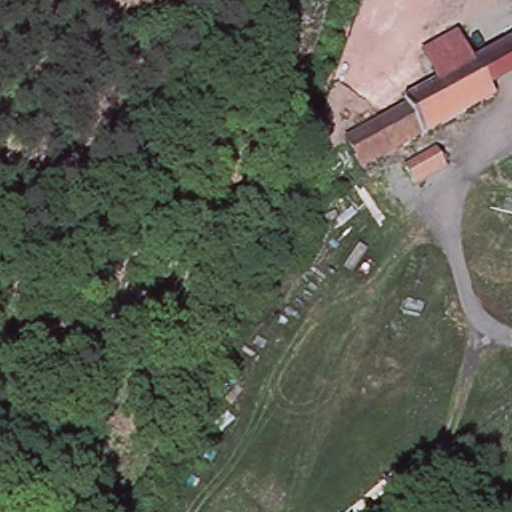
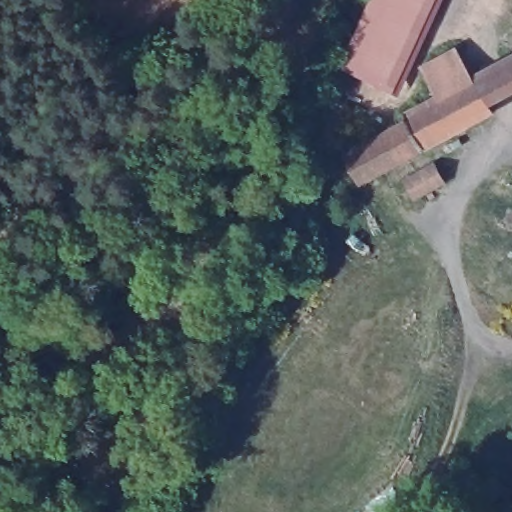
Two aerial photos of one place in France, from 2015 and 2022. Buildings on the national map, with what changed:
new [(369,0),(442,0),(398,96),(338,66),(369,0)]
unchanged [(430,66),(465,48),(478,74),(451,88),(443,92),(430,66)]
unchanged [(512,56),(512,85),(491,96),(480,74),(512,56)]
unchanged [(478,74),(480,74),(491,96),(496,106),(468,121),(451,88),(478,74)]
unchanged [(468,121),(367,174),(352,146),(412,114),(410,110),(443,92),(451,88),(468,121)]

